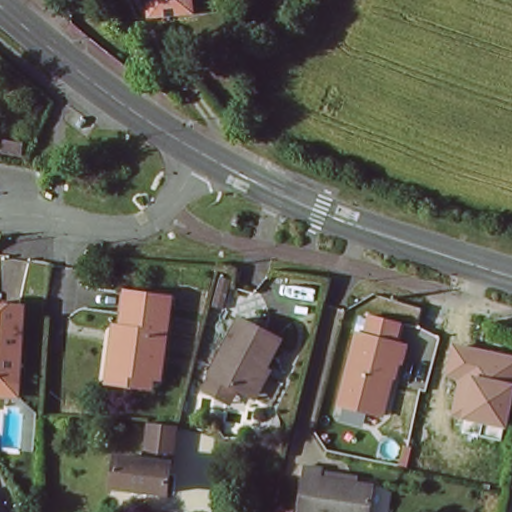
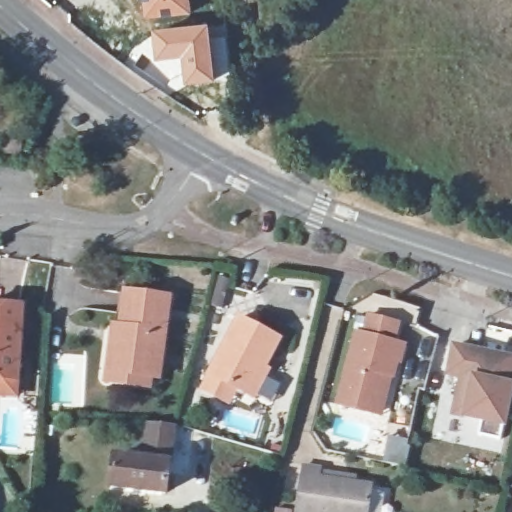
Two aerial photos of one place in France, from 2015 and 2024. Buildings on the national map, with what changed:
unchanged [(151,17),(149,0),(191,0),(193,12),(151,17)]
new [(213,24),(219,82),(187,86),(183,62),(157,63),(154,30),(213,24)]
unchanged [(103,381),(111,324),(119,324),(124,290),(170,297),(160,378),(151,377),(149,387),(103,381)]
unchanged [(11,380),(0,379),(0,304),(17,305),(11,380)]
unchanged [(400,321),(397,342),(406,343),(402,366),(397,365),(384,417),(335,407),(355,328),(363,331),(368,313),(400,321)]
unchanged [(250,398),(244,396),(204,373),(234,317),(275,338),(259,367),(264,371),(250,398)]
unchanged [(454,343),(512,355),(512,400),(503,442),(462,433),(464,420),(453,417),(460,379),(448,373),(454,343)]
unchanged [(114,458),(170,465),(167,494),(112,487),(114,458)]
unchanged [(321,469),(319,478),(371,486),(366,512),(295,512),(303,467),(321,469)]

